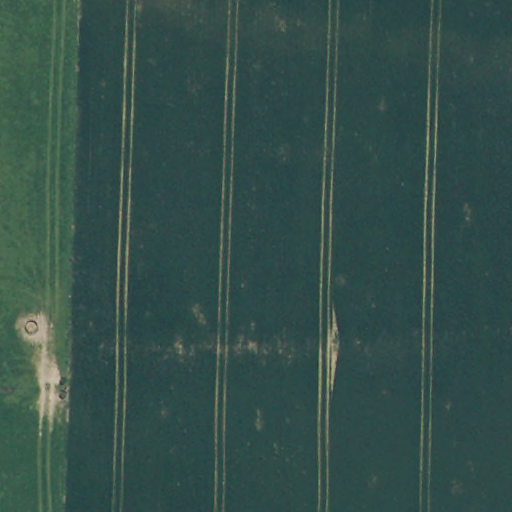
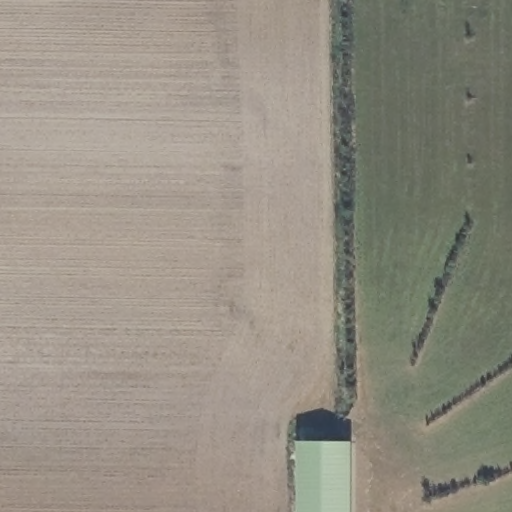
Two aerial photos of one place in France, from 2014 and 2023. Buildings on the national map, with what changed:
new [(302,441),(355,442),(354,512),(301,512),(302,441)]

